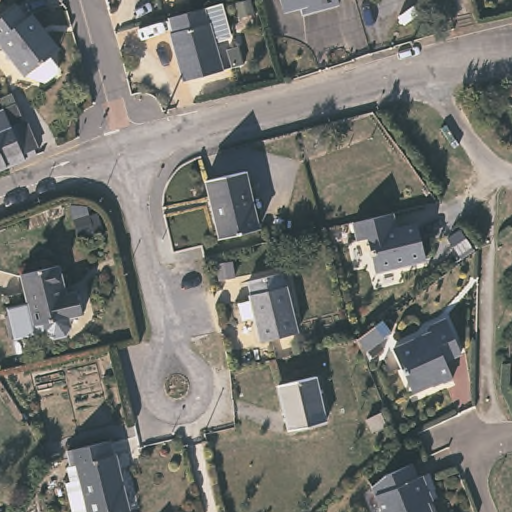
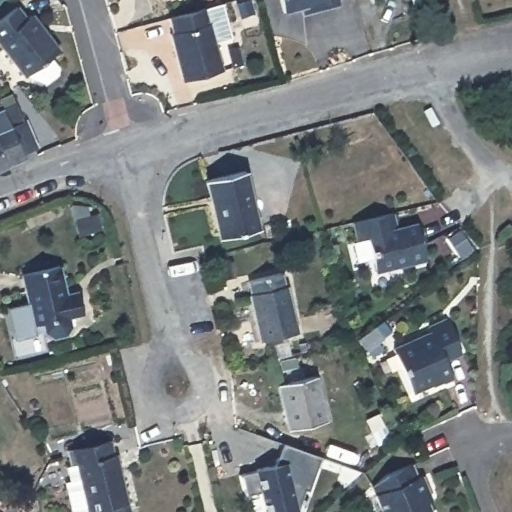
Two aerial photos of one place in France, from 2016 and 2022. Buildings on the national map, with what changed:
unchanged [(298,9),(281,14),(278,0),(336,0),(337,7),(317,12),(301,16),(298,9)]
unchanged [(49,74),(37,83),(25,77),(21,74),(18,75),(0,52),(0,13),(10,6),(18,18),(24,14),(41,38),(37,41),(47,53),(41,58),(49,68),(49,74)]
unchanged [(179,85),(166,38),(168,37),(165,23),(199,14),(216,9),(225,42),(209,46),(217,75),(179,85)]
unchanged [(17,156),(22,163),(6,171),(0,174),(0,117),(17,156)]
unchanged [(257,231),(217,240),(206,181),(245,172),(257,231)]
unchanged [(396,212),(400,228),(420,223),(428,260),(378,271),(371,236),(361,239),(358,230),(357,221),(396,212)]
unchanged [(469,236),(458,247),(448,237),(459,227),(469,236)]
unchanged [(57,292),(69,290),(74,311),(61,314),(62,326),(59,333),(50,335),(39,330),(36,320),(27,322),(14,271),(50,263),(57,292)]
unchanged [(283,286),(287,286),(295,334),(259,342),(250,293),(254,292),(252,278),(280,272),(283,286)]
unchanged [(462,349),(445,357),(453,374),(442,379),(438,377),(413,388),(393,345),(431,328),(428,323),(446,315),(462,349)]
unchanged [(392,331),(375,344),(367,333),(383,320),(392,331)]
unchanged [(319,423),(283,431),(272,385),(310,376),(319,423)]
unchanged [(391,423),(373,430),(368,417),(385,410),(391,423)]
unchanged [(119,452),(132,508),(116,512),(77,512),(70,481),(75,480),(71,464),(75,462),(72,448),(113,438),(116,453),(119,452)]
new [(284,443),(318,456),(308,490),(302,488),(296,510),(289,512),(265,512),(259,487),(246,492),(243,474),(277,463),(284,443)]
unchanged [(380,512),(378,509),(382,508),(372,480),(387,465),(410,455),(417,470),(422,468),(429,484),(432,491),(426,495),(432,511),(430,512),(380,512)]
unchanged [(11,512),(4,507),(9,498),(28,512),(11,512)]

